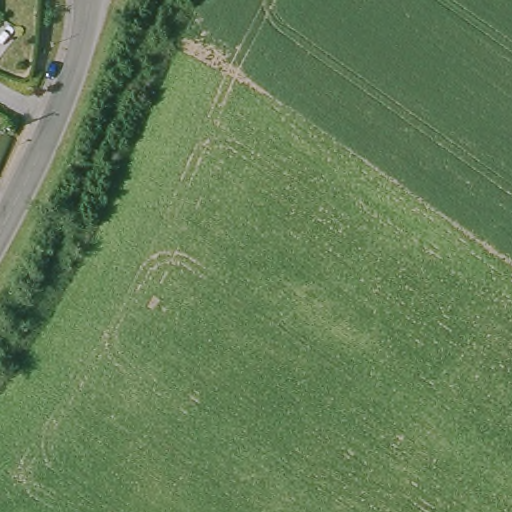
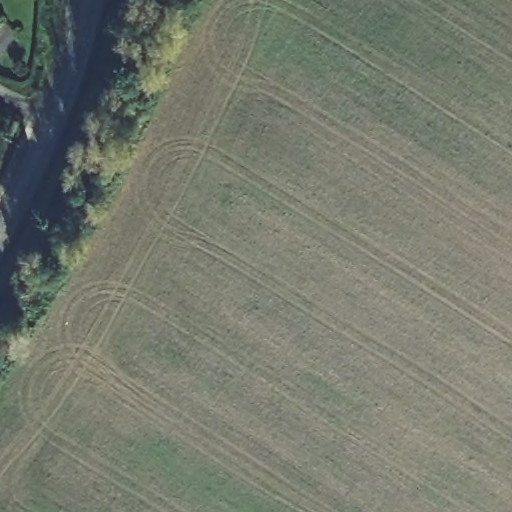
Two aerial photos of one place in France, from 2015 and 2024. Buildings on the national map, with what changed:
unchanged [(0,15),(0,10),(2,12),(0,15)]

